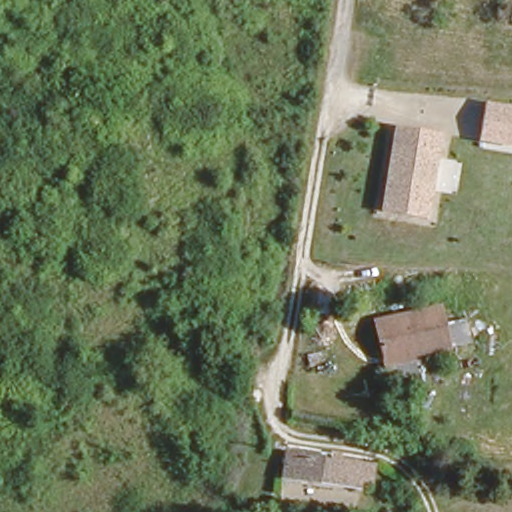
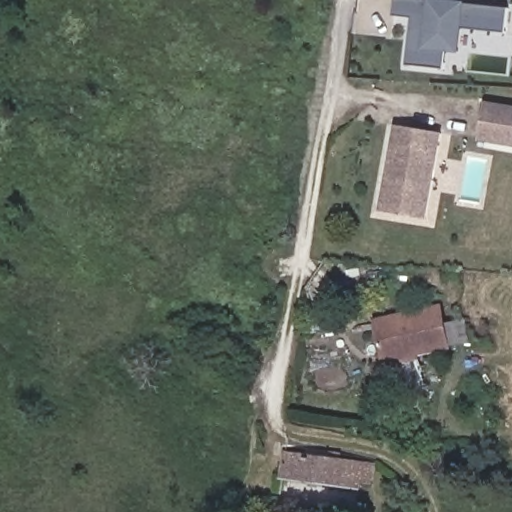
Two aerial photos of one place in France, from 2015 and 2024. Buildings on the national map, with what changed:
new [(507,34),(464,30),(462,55),(447,53),(445,70),(408,66),(413,19),(394,17),(397,0),(434,0),(509,8),(507,34)]
unchanged [(511,109),(512,109),(512,145),(479,139),(479,136),(485,105),(511,109)]
unchanged [(395,127),(396,125),(428,131),(441,133),(426,219),(382,212),(395,127)]
unchanged [(366,314),(438,299),(452,348),(380,362),(366,314)]
unchanged [(370,489),(296,481),(298,454),(372,462),(370,489)]

